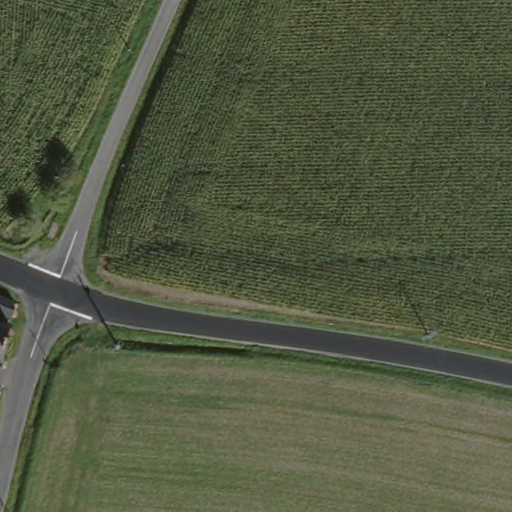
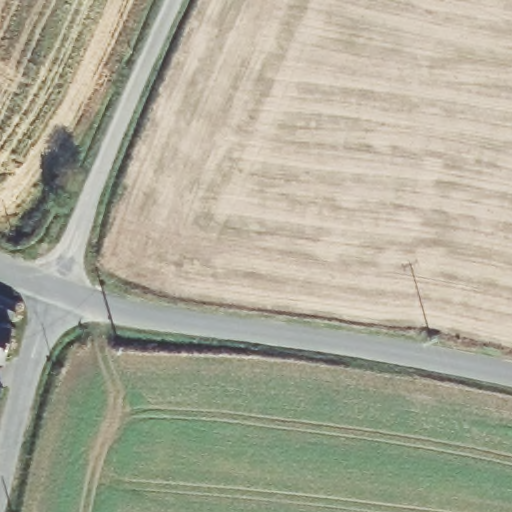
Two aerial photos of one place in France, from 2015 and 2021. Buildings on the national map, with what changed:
unchanged [(24,300),(24,311),(0,299),(0,288),(24,300)]
unchanged [(24,323),(14,360),(0,358),(0,319),(24,323)]
unchanged [(5,386),(0,413),(0,386),(5,386)]

